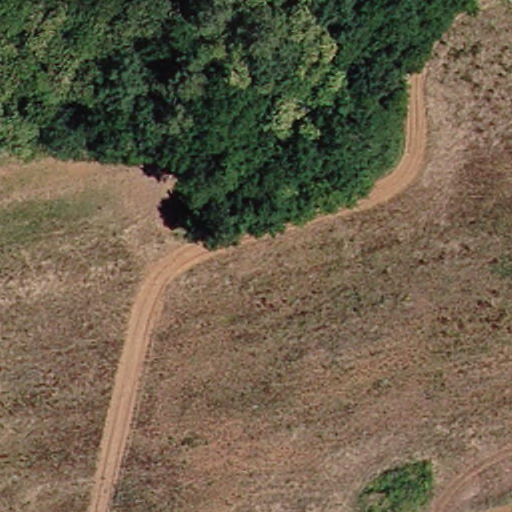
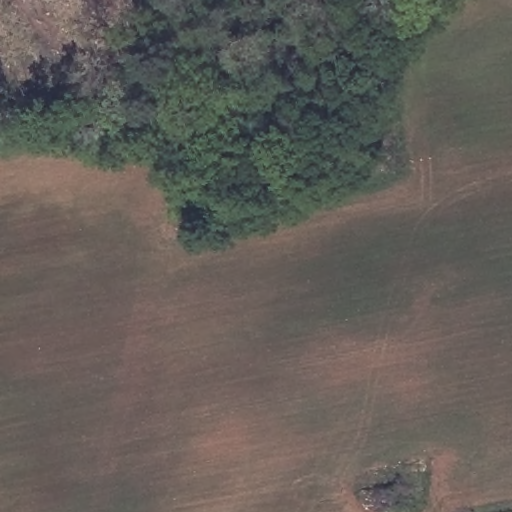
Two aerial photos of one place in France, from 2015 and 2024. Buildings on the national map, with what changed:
[]

